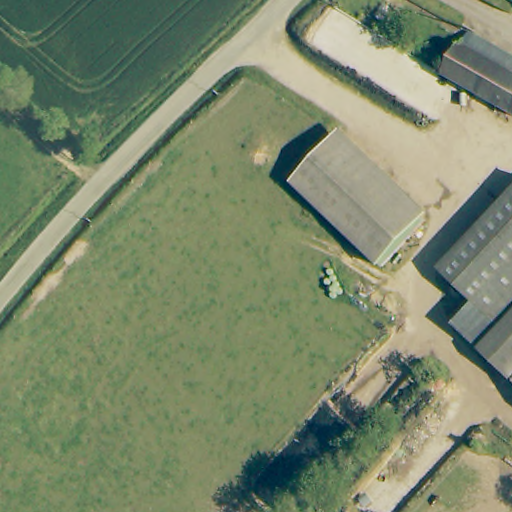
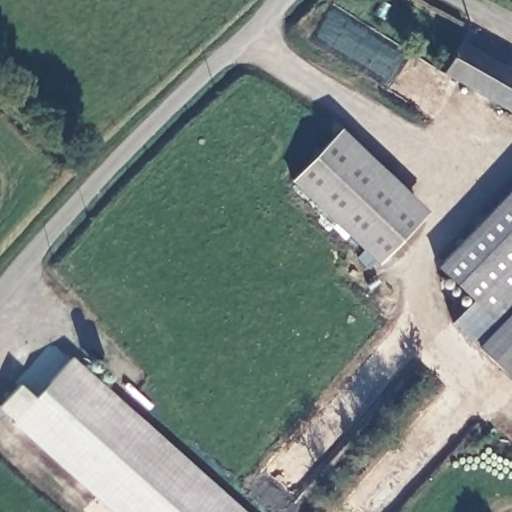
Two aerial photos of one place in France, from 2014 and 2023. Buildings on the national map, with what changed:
unchanged [(458,48),(466,34),(478,41),(512,60),(512,77),(511,79),(512,79),(512,121),(440,76),(458,48)]
unchanged [(297,177),(341,131),(427,214),(383,260),(297,177)]
unchanged [(498,364),(468,337),(453,323),(473,297),(438,262),(512,189),(512,369),(505,362),(501,367),(498,364)]
new [(19,386),(33,399),(68,361),(235,512),(113,512),(0,410),(0,406),(19,386)]

